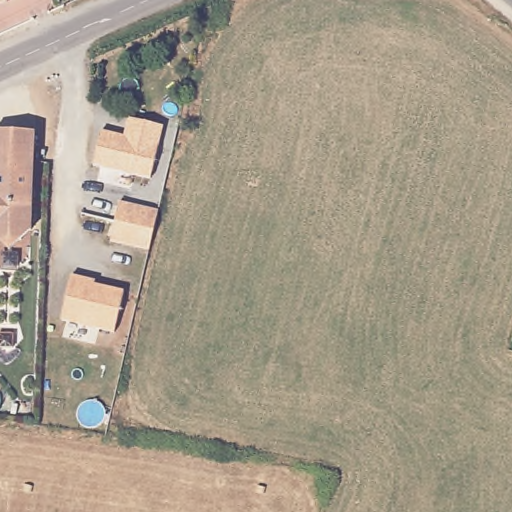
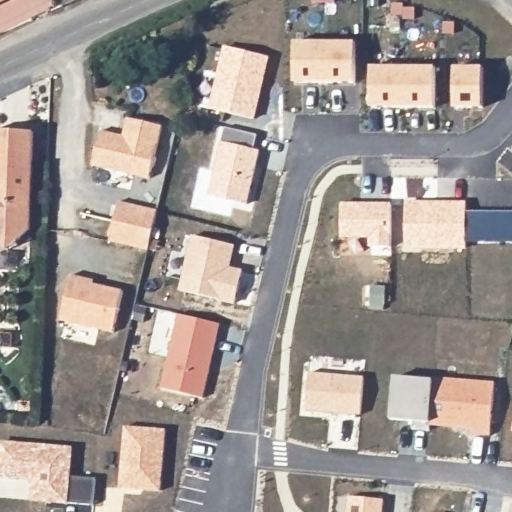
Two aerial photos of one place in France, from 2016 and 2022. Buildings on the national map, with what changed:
new [(356,84),(295,83),(297,41),(356,42),(356,84)]
new [(255,117),(214,108),(227,47),(268,57),(255,117)]
new [(435,108),(372,107),(372,66),(436,66),(435,108)]
new [(483,107),(455,108),(455,67),(483,66),(483,107)]
unchanged [(149,174),(92,160),(100,126),(129,133),(134,115),(162,121),(149,174)]
unchanged [(0,123),(31,124),(27,222),(17,231),(6,242),(0,236),(0,123)]
new [(254,150),(261,151),(247,205),(211,196),(223,142),(226,128),(258,135),(254,150)]
unchanged [(157,207),(147,245),(108,236),(117,197),(157,207)]
new [(393,247),(372,246),(372,237),(342,236),(343,205),(393,205),(393,247)]
new [(467,243),(468,212),(512,212),(512,243),(467,243)]
new [(230,267),(244,271),(237,302),(182,290),(193,236),(237,245),(230,267)]
unchanged [(91,280),(90,282),(127,291),(117,333),(63,320),(74,275),(91,280)]
new [(204,397),(161,387),(179,315),(222,325),(204,397)]
new [(362,415),(308,409),(312,373),(366,377),(362,415)]
new [(491,437),(472,436),(472,429),(431,425),(431,430),(415,429),(417,420),(391,419),(395,376),(435,380),(436,377),(497,382),(491,437)]
new [(161,491),(147,490),(147,486),(139,485),(139,490),(121,488),(127,426),(166,431),(161,491)]
new [(70,502),(70,505),(32,502),(34,482),(0,479),(0,441),(75,447),(72,477),(97,478),(95,505),(70,502)]
new [(386,500),(385,512),(348,512),(350,497),(386,500)]

